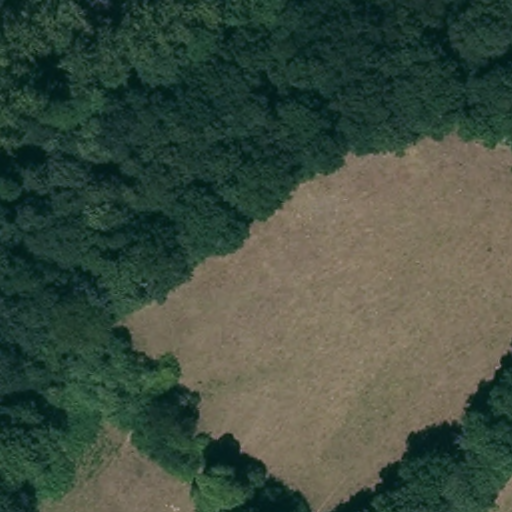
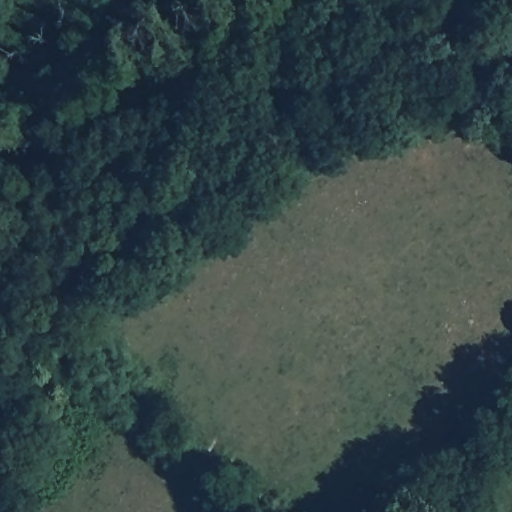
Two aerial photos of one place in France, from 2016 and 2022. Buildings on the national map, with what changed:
[]

